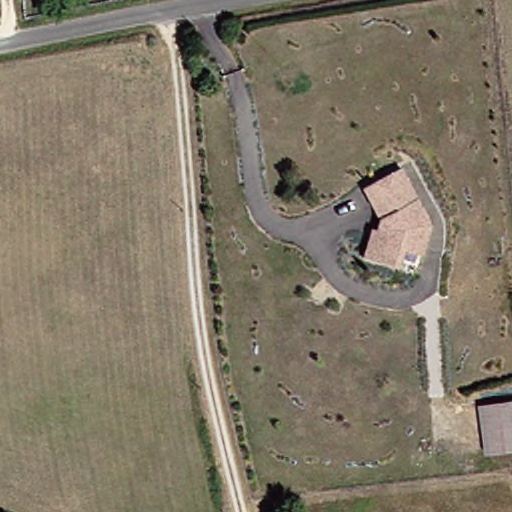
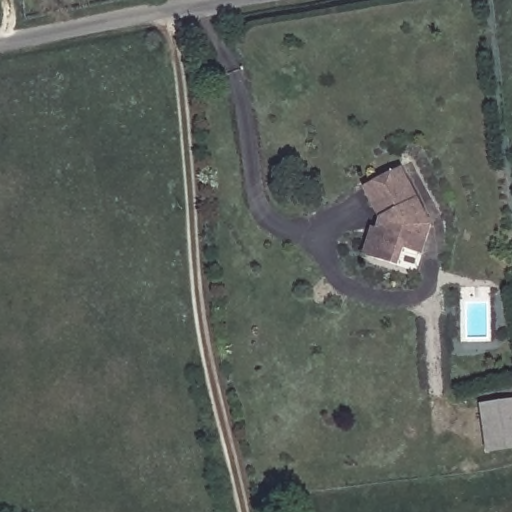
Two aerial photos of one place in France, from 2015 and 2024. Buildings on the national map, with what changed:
unchanged [(373,227),(378,230),(382,217),(367,186),(404,167),(433,225),(424,253),(405,247),(399,265),(377,257),(365,253),(373,227)]
unchanged [(512,399),(512,449),(489,452),(480,404),(512,399)]

